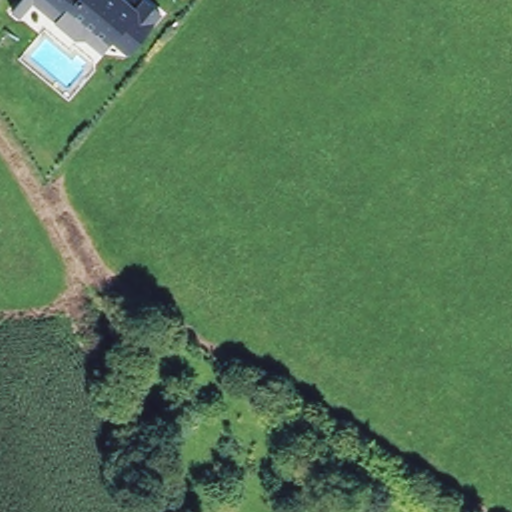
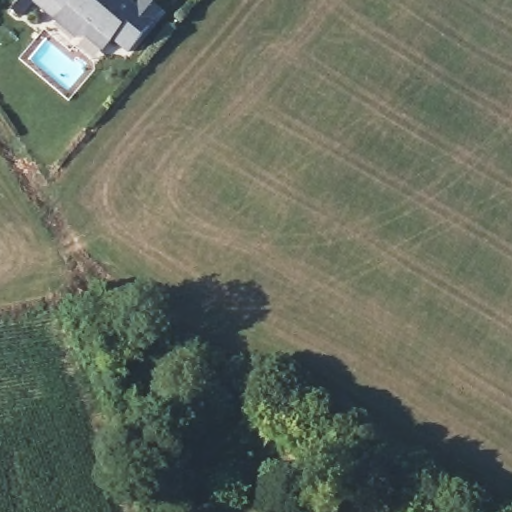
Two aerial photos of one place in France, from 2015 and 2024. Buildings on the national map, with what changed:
unchanged [(23,11),(15,5),(20,0),(33,0),(23,11)]
unchanged [(89,31),(79,32),(61,16),(42,0),(136,0),(139,3),(142,0),(156,0),(164,7),(132,46),(116,33),(112,37),(106,45),(89,31)]

